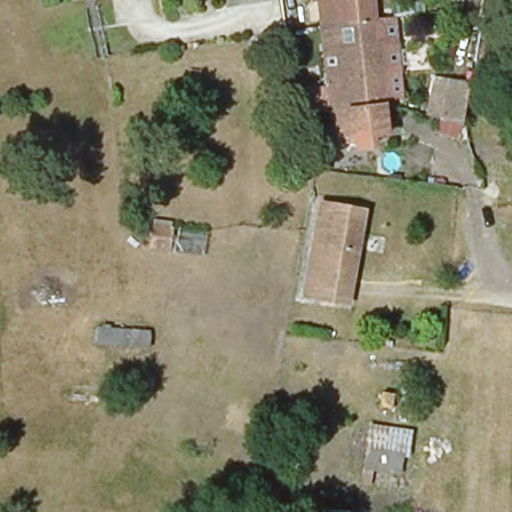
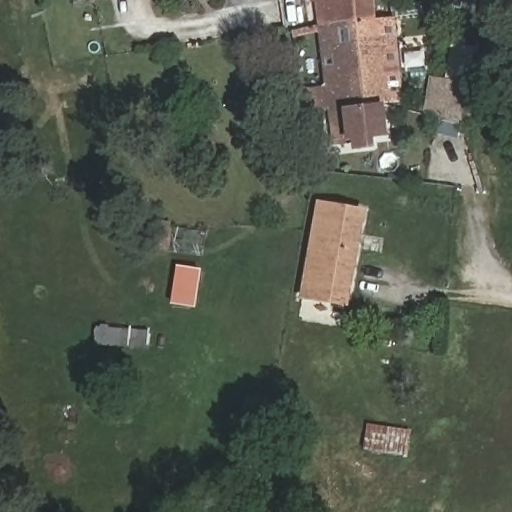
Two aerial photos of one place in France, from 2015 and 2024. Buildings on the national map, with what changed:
unchanged [(320,26),(317,0),(372,0),(374,19),(340,23),(320,26)]
unchanged [(320,26),(340,23),(374,19),(393,17),(396,44),(378,46),(383,100),(383,104),(331,110),(320,26)]
unchanged [(396,44),(402,98),(383,100),(378,46),(396,44)]
unchanged [(468,85),(461,125),(428,116),(433,79),(468,85)]
unchanged [(386,134),(335,141),(331,110),(383,104),(386,134)]
unchanged [(346,302),(303,296),(320,204),(362,212),(346,302)]
unchanged [(170,224),(167,250),(151,249),(153,223),(170,224)]
unchanged [(147,332),(147,346),(120,344),(98,342),(99,329),(147,332)]
unchanged [(378,425),(422,430),(420,457),(413,456),(373,451),(378,425)]

